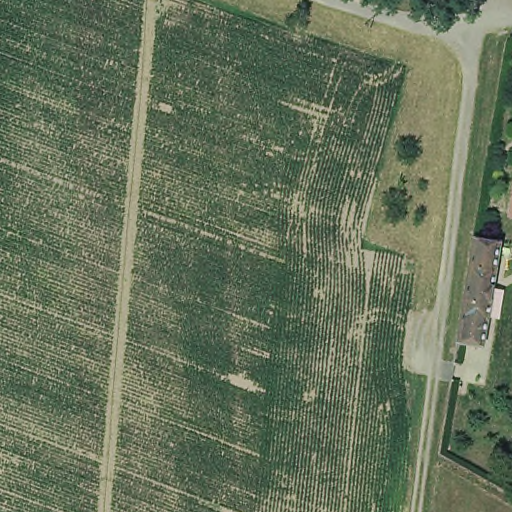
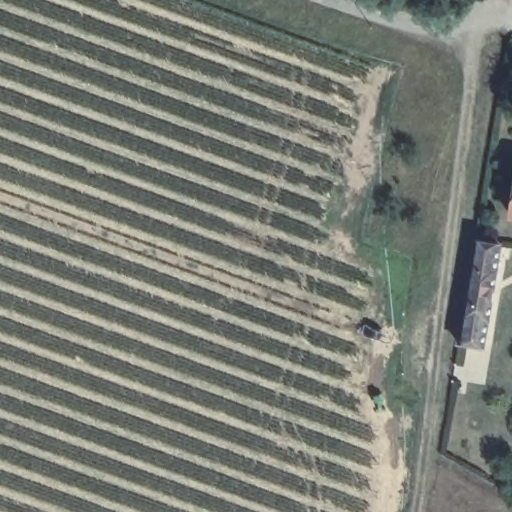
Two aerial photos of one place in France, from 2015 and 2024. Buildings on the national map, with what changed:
unchanged [(512,208),(512,217),(510,217),(512,208)]
unchanged [(460,341),(475,238),(499,242),(485,346),(460,341)]

